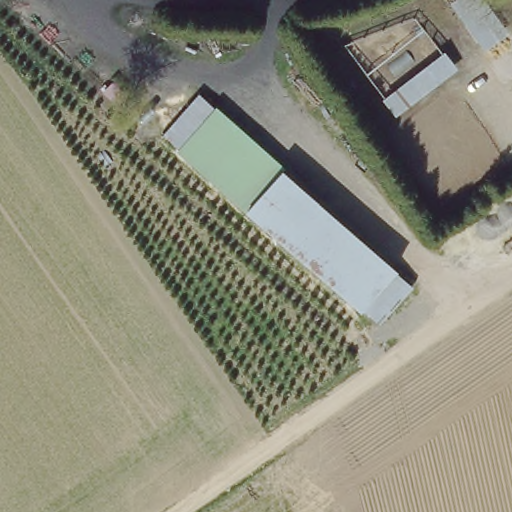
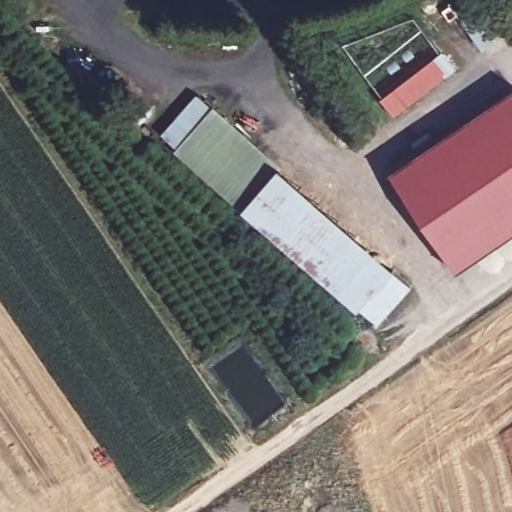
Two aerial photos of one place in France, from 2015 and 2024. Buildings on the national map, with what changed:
new [(459,0),(483,0),(504,29),(482,45),(453,5),(459,0)]
new [(446,55),(458,70),(398,117),(386,102),(446,55)]
new [(512,91),(512,231),(454,271),(386,172),(509,86),(512,91)]
unchanged [(248,189),(234,205),(174,148),(218,101),(286,155),(248,189)]
unchanged [(397,286),(364,316),(234,205),(248,189),(269,172),(286,155),(371,247),(403,281),(397,286)]

